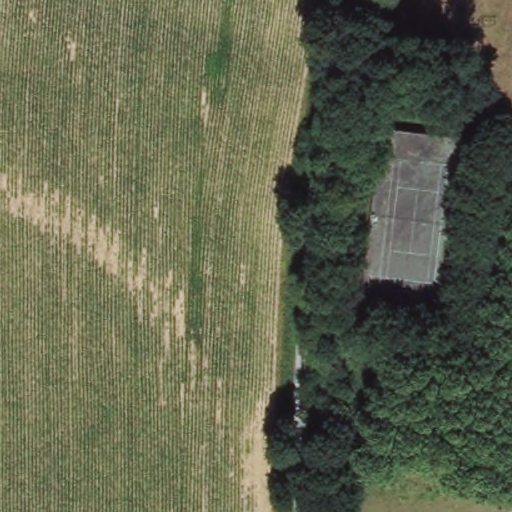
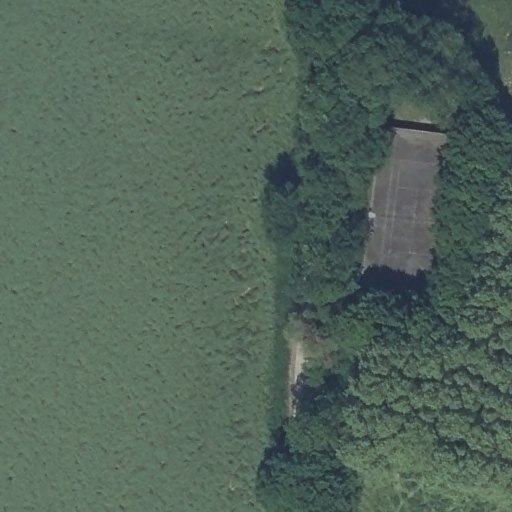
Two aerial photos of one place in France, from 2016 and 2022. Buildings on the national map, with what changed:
[]

